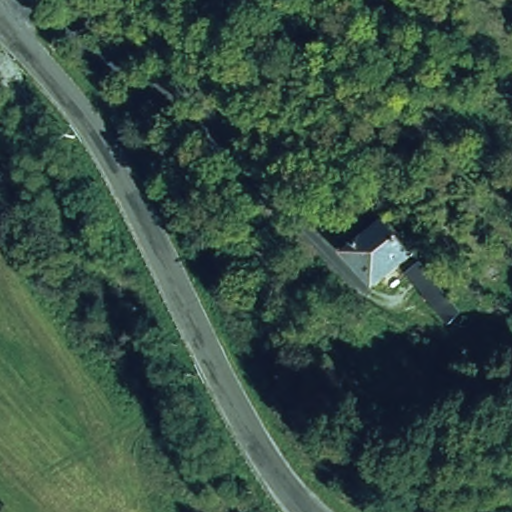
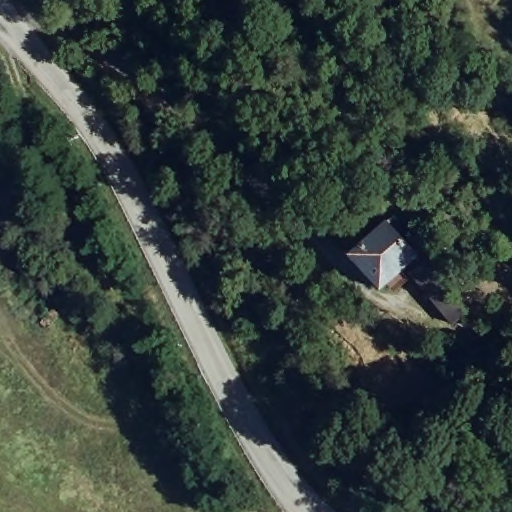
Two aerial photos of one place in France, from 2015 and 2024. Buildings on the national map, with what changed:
unchanged [(381,219),(413,257),(374,292),(341,254),(381,219)]
unchanged [(461,311),(444,324),(404,278),(419,263),(461,311)]

